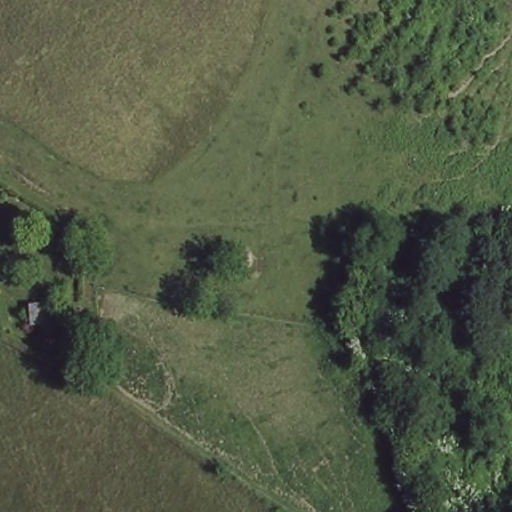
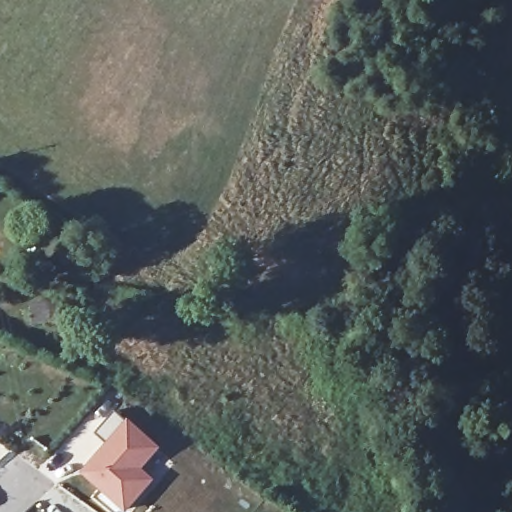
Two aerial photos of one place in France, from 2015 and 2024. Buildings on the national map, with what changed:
unchanged [(63,288),(62,309),(34,308),(34,287),(63,288)]
new [(156,481),(127,512),(125,512),(81,473),(128,420),(162,449),(143,470),(156,481)]

